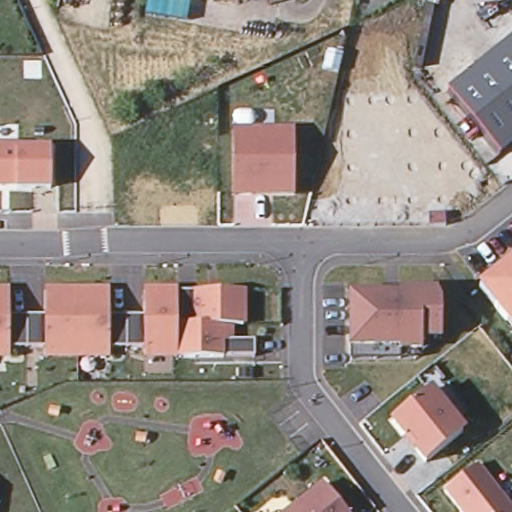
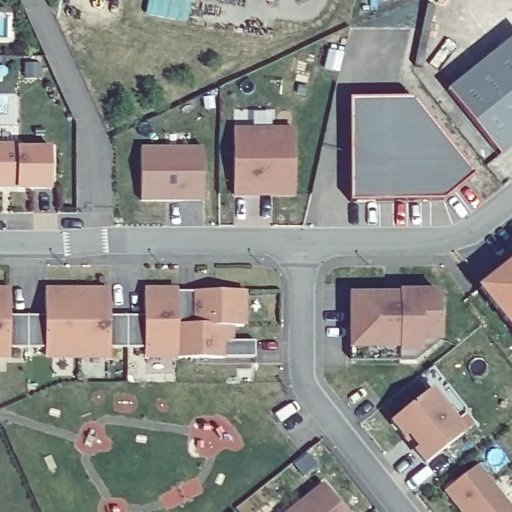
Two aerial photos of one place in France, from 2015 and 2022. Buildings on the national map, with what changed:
unchanged [(250,0),(273,0),(272,5),(250,0)]
unchanged [(449,91),(512,39),(512,147),(500,157),(449,91)]
new [(352,101),(413,99),(475,176),(449,196),(443,201),(352,201),(352,101)]
unchanged [(296,126),(297,195),(235,195),(234,124),(296,126)]
unchanged [(17,143),(17,147),(50,148),(50,192),(19,192),(18,188),(0,188),(0,143),(17,143)]
new [(142,200),(141,147),(203,147),(203,202),(142,200)]
unchanged [(481,289),(512,265),(512,329),(507,323),(481,289)]
unchanged [(13,287),(13,312),(31,312),(31,345),(13,345),(13,352),(0,352),(0,287),(13,287)]
unchanged [(49,312),(49,287),(82,287),(81,352),(49,352),(49,345),(31,345),(31,312),(49,312)]
unchanged [(114,287),(114,312),(131,312),(130,345),(114,345),(114,352),(81,352),(82,287),(114,287)]
unchanged [(148,312),(148,287),(179,287),(179,352),(148,352),(148,345),(130,345),(131,312),(148,312)]
unchanged [(247,287),(247,322),(235,322),(235,337),(259,337),(259,355),(179,355),(179,352),(179,287),(247,287)]
unchanged [(352,359),(352,347),(352,294),(387,294),(387,297),(400,297),(400,292),(438,292),(442,301),(442,339),(417,359),(352,359)]
unchanged [(432,388),(466,432),(429,461),(419,447),(422,444),(413,432),(409,435),(395,417),(432,388)]
unchanged [(512,512),(457,512),(442,493),(477,467),(512,512)]
unchanged [(322,487),(343,512),(290,512),(322,487)]

